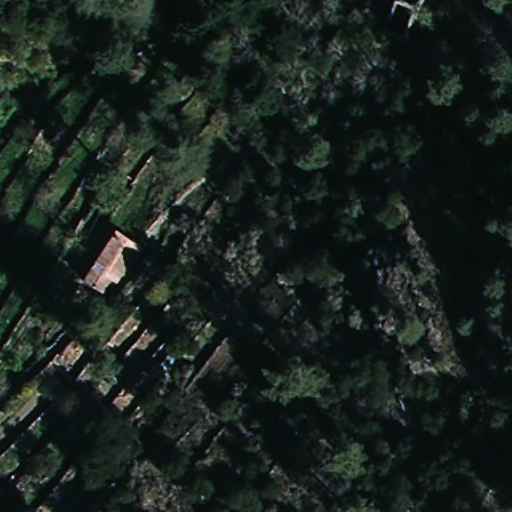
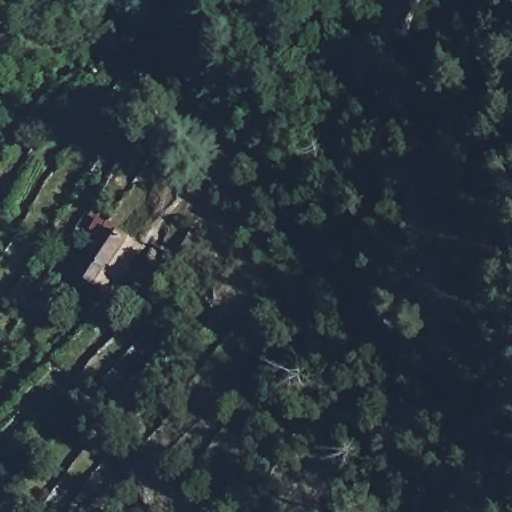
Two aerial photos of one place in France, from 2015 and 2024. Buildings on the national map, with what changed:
unchanged [(424,0),(399,44),(378,31),(373,27),(388,0),(424,0)]
unchanged [(95,294),(80,283),(98,259),(88,252),(98,237),(106,225),(141,246),(127,268),(115,287),(106,282),(95,294)]
unchanged [(113,329),(125,341),(110,355),(98,344),(113,329)]

